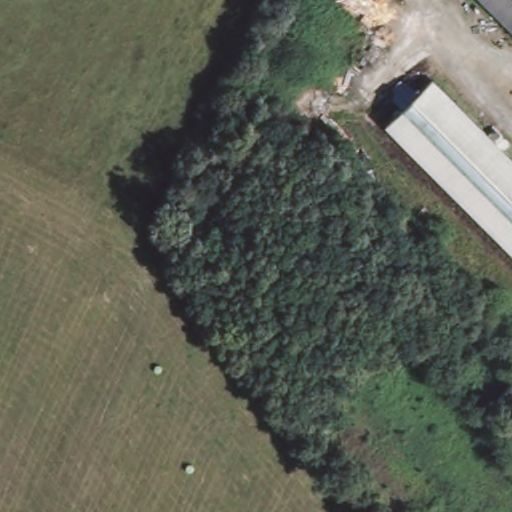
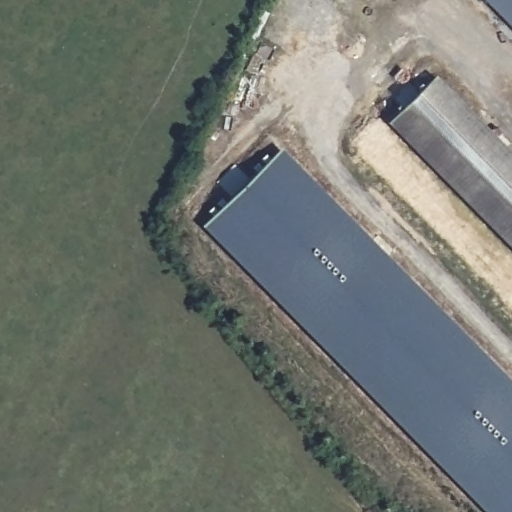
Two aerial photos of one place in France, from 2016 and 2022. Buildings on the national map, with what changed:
unchanged [(482,0),(512,0),(512,30),(482,0)]
unchanged [(387,123),(434,75),(512,154),(512,250),(387,123)]
new [(485,512),(201,226),(279,149),(512,385),(512,512),(485,512)]

